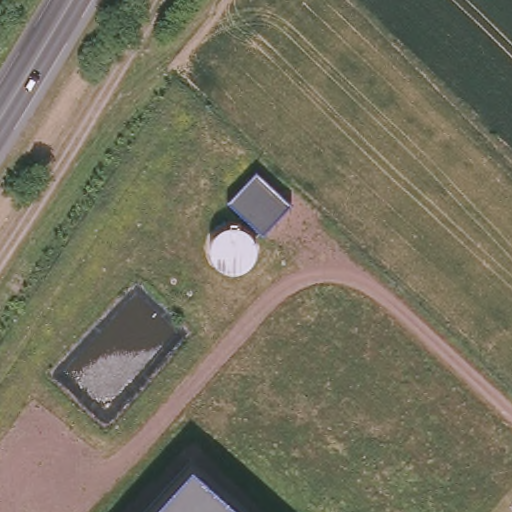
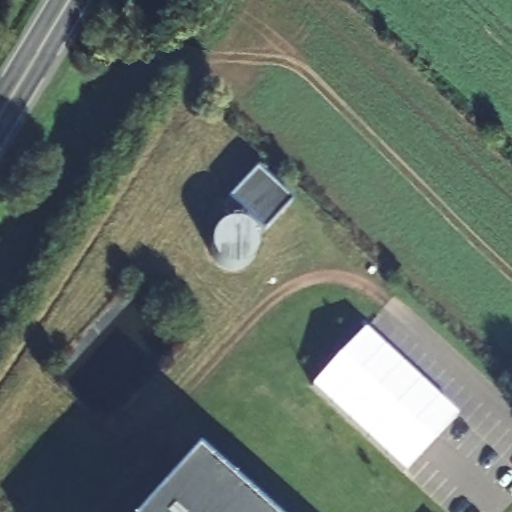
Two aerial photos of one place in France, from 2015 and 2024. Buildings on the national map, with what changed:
unchanged [(258,242),(258,249),(256,255),(252,261),(247,265),(241,268),(234,269),(226,268),(219,264),(214,259),(211,253),(210,249),(210,244),(211,237),(214,231),(219,227),(223,224),(228,222),(236,222),(241,223),(247,218),(224,197),(238,183),(253,166),(289,198),(273,216),(260,230),(258,228),(253,233),(254,235),(258,242)]
new [(311,387),(363,330),(457,416),(404,472),(311,387)]
unchanged [(191,461),(248,512),(145,512),(191,461)]

